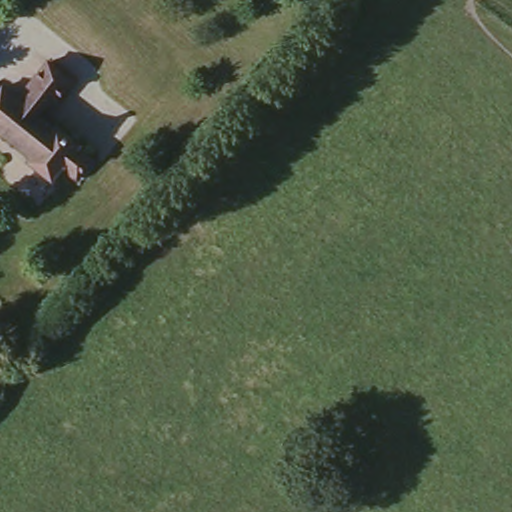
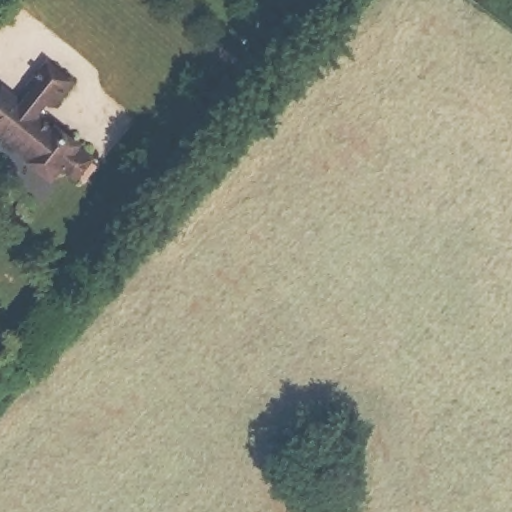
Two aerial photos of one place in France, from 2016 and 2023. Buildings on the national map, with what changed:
unchanged [(42,61),(66,80),(48,104),(42,100),(30,115),(50,129),(53,126),(75,142),(72,148),(87,160),(74,179),(57,167),(48,178),(26,161),(31,155),(0,132),(0,91),(16,104),(28,89),(24,85),(42,61)]

